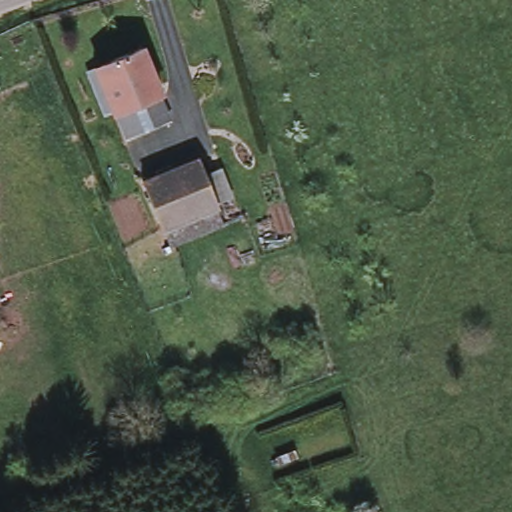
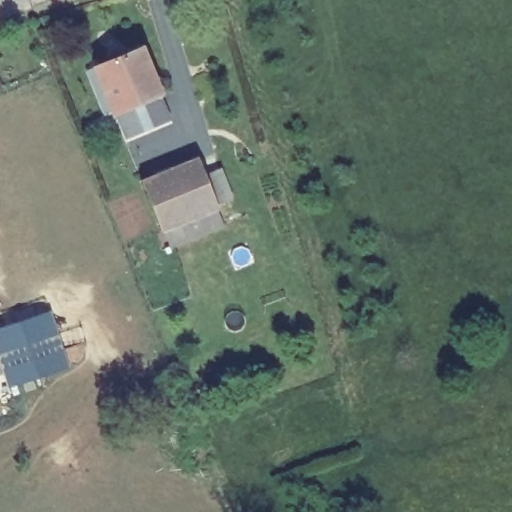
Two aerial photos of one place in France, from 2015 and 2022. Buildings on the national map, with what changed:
unchanged [(154,83),(151,84),(108,101),(106,102),(88,55),(136,36),(154,83)]
unchanged [(151,84),(162,109),(119,126),(108,101),(151,84)]
unchanged [(214,208),(158,230),(139,185),(196,163),(214,208)]
new [(70,368),(9,389),(0,362),(0,328),(50,310),(70,368)]

